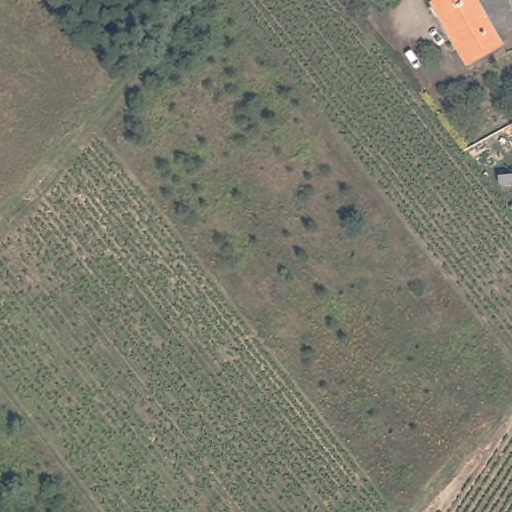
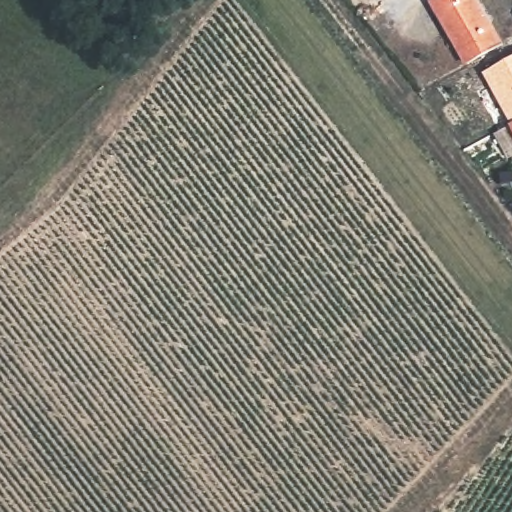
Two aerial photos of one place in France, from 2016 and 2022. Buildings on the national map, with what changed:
unchanged [(480,0),(505,43),(467,65),(438,15),(433,5),(442,0),(480,0)]
new [(512,122),(483,71),(512,56),(512,122)]

